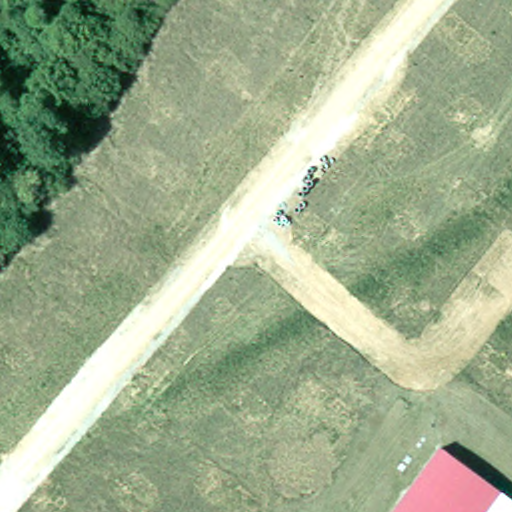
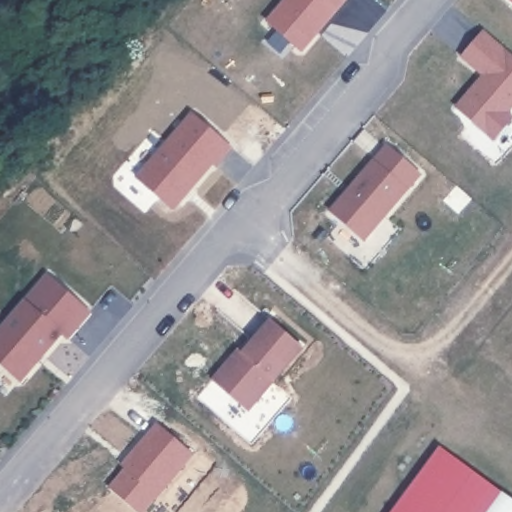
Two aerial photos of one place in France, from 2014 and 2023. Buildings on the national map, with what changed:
new [(506,0),(512,0),(512,5),(506,0)]
new [(510,113),(512,115),(512,121),(495,142),(455,110),(482,76),(461,58),(484,30),(512,54),(512,111),(510,113)]
new [(231,147),(175,212),(137,179),(192,114),(231,147)]
new [(386,145),(424,176),(410,191),(364,242),(328,211),(372,159),(386,145)]
new [(22,383),(0,365),(0,329),(26,300),(47,274),(92,314),(69,340),(63,335),(22,383)]
new [(271,319),(302,348),(274,382),(249,412),(214,379),(238,348),(242,351),(271,319)]

